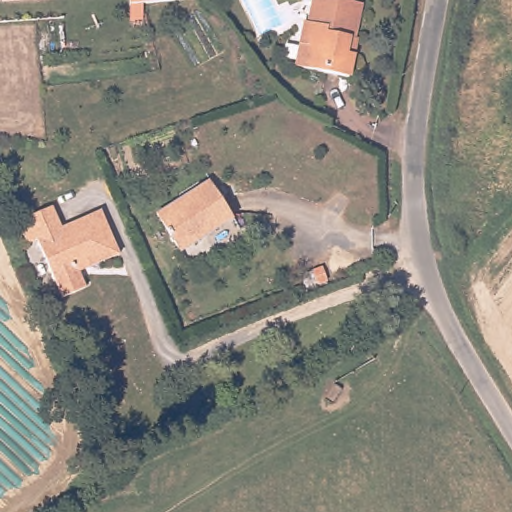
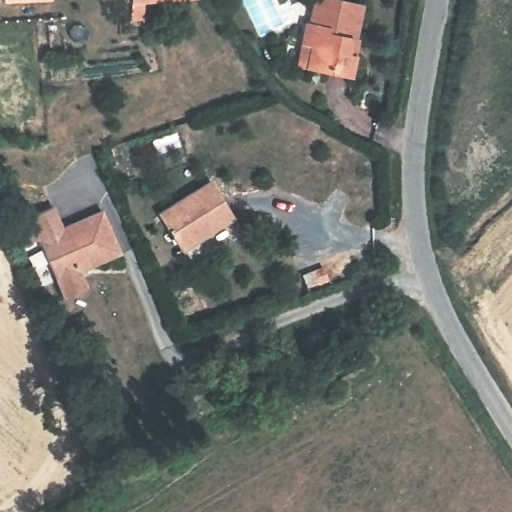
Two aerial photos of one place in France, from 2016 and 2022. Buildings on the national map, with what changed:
unchanged [(42,1),(10,0),(42,0),(42,1)]
unchanged [(143,1),(144,21),(130,21),(130,2),(130,0),(173,0),(151,1),(144,1),(143,1)]
unchanged [(296,37),(305,7),(313,9),(315,0),(364,0),(355,36),(362,37),(359,54),(352,79),(300,66),(289,62),(296,37)]
unchanged [(237,217),(180,250),(155,210),(213,176),(237,217)]
unchanged [(58,206),(66,226),(103,211),(122,254),(81,271),(89,288),(63,299),(39,241),(31,245),(21,221),(58,206)]

